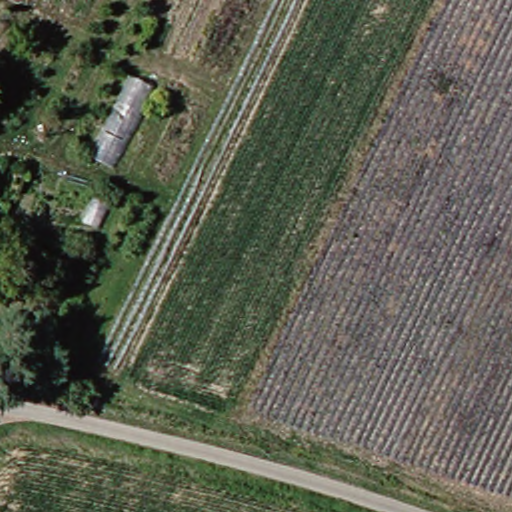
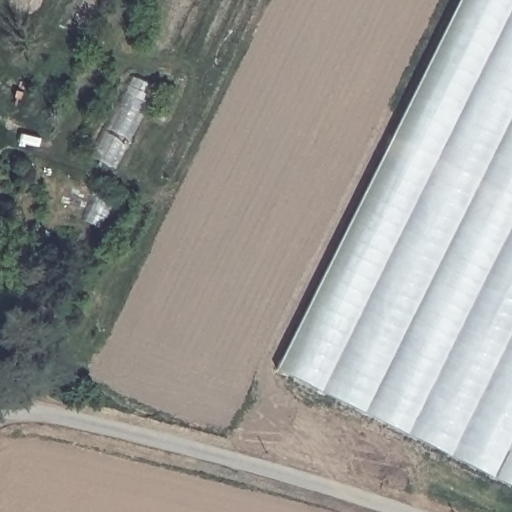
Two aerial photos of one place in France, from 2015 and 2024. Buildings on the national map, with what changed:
new [(460,0),(512,0),(512,487),(277,371),(460,0)]

